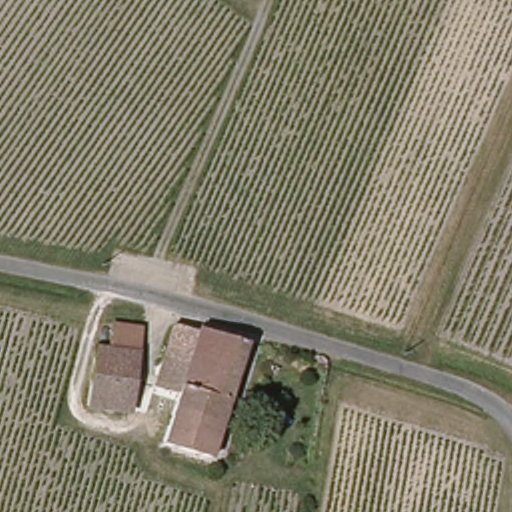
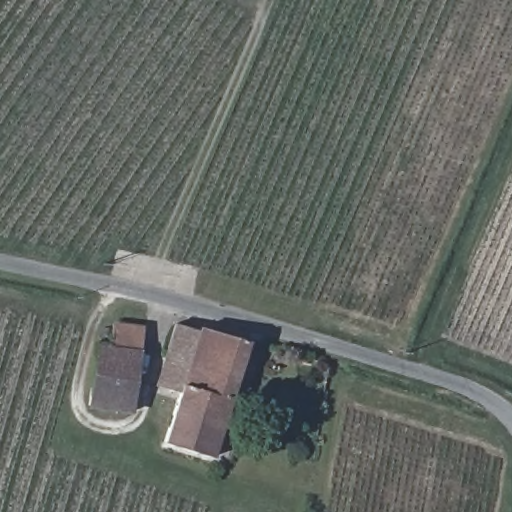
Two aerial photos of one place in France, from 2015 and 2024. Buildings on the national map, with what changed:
unchanged [(80,405),(90,346),(107,346),(111,322),(139,325),(126,411),(101,411),(80,405)]
unchanged [(166,446),(170,431),(181,390),(157,383),(175,323),(201,330),(205,325),(245,337),(213,442),(209,457),(166,446)]

